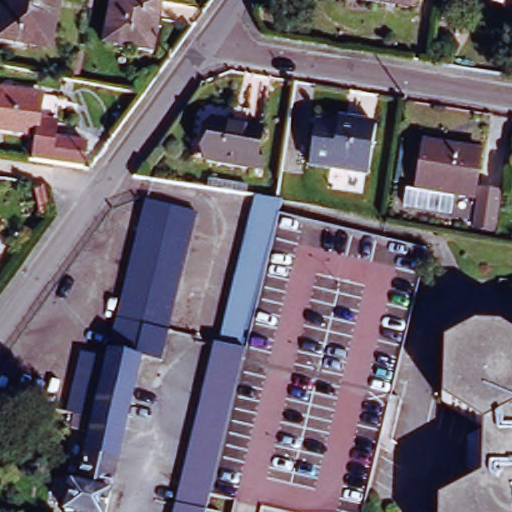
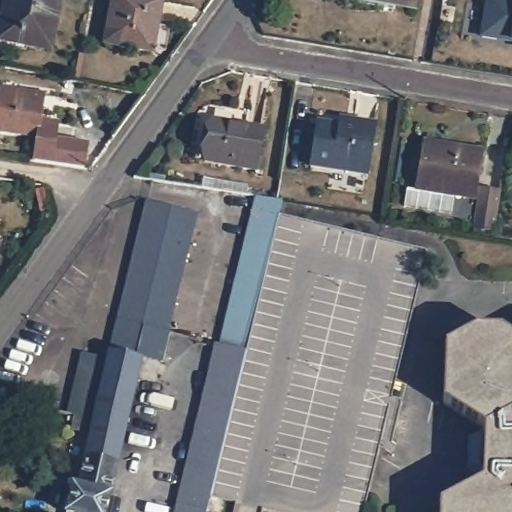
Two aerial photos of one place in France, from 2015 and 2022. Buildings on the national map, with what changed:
unchanged [(2,46),(11,0),(63,0),(52,55),(2,46)]
unchanged [(152,56),(102,45),(110,0),(145,0),(162,4),(152,56)]
unchanged [(340,0),(408,0),(407,10),(387,7),(385,11),(339,2),(340,0)]
unchanged [(458,0),(477,0),(475,5),(458,0)]
new [(480,40),(486,0),(512,0),(512,43),(510,43),(480,40)]
unchanged [(1,87),(0,94),(0,87),(1,87)]
unchanged [(42,105),(37,127),(54,131),(51,147),(83,154),(79,177),(30,168),(34,145),(0,138),(0,98),(42,105)]
unchanged [(255,136),(248,177),(196,169),(203,127),(255,136)]
unchanged [(363,185),(305,175),(312,134),(338,138),(340,130),(350,131),(372,135),(363,185)]
unchanged [(475,154),(470,195),(433,189),(432,196),(410,194),(417,145),(475,154)]
unchanged [(493,195),(488,231),(469,228),(475,191),(493,195)]
unchanged [(275,201),(242,346),(217,341),(250,197),(275,201)]
unchanged [(173,505),(211,345),(223,348),(224,345),(241,350),(242,346),(275,201),(280,202),(277,216),(420,250),(361,512),(272,512),(223,500),(221,512),(171,512),(173,505)]
unchanged [(135,205),(187,217),(160,333),(109,323),(135,205)]
unchanged [(160,333),(162,334),(155,368),(135,363),(100,512),(59,512),(65,485),(80,488),(90,442),(82,440),(85,426),(63,420),(76,360),(102,366),(105,356),(102,356),(109,323),(160,333)]
unchanged [(437,506),(480,485),(481,430),(440,405),(443,350),(472,331),(497,332),(512,342),(512,512),(437,512),(437,506)]

